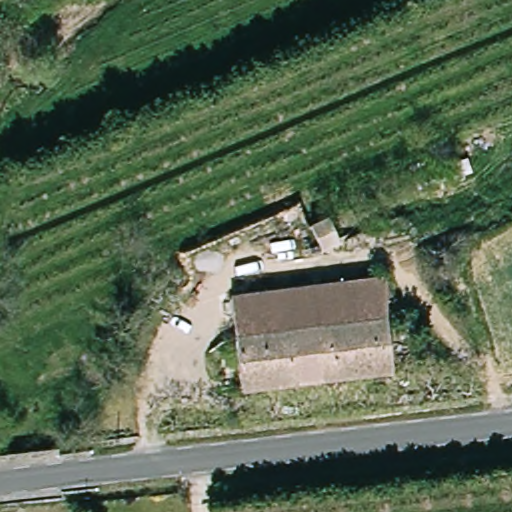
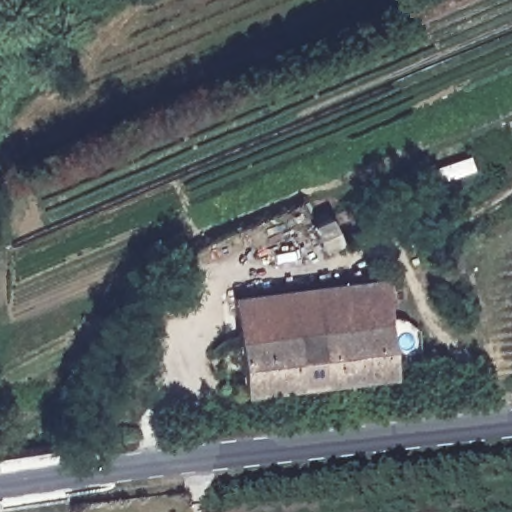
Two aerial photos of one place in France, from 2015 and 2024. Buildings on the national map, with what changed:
unchanged [(396,373),(247,390),(237,299),(393,282),(396,373)]

